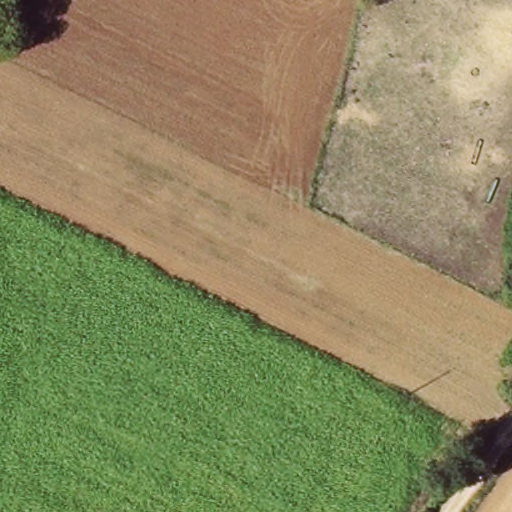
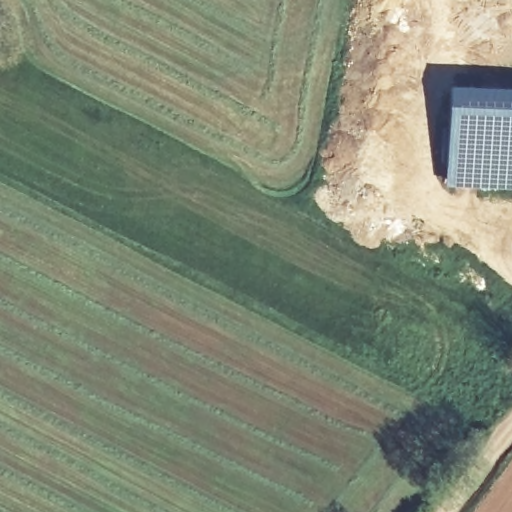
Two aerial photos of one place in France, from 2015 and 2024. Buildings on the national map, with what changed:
new [(445,185),(448,106),(448,86),(512,88),(512,189),(445,185)]

